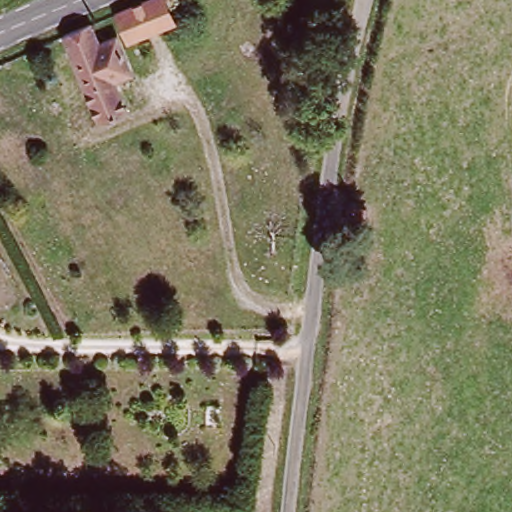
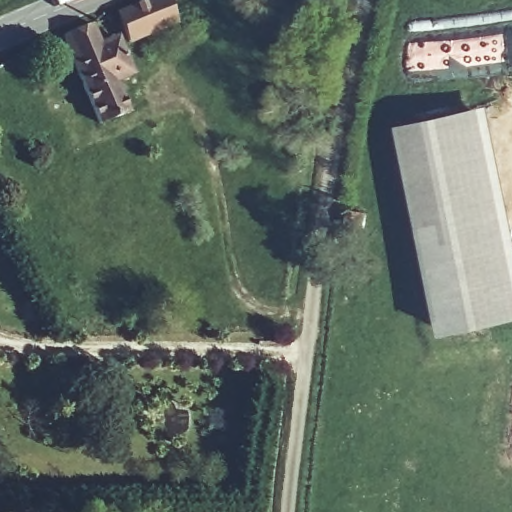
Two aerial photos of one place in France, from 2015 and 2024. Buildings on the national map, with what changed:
unchanged [(125,40),(115,16),(159,0),(161,0),(170,23),(125,40)]
unchanged [(85,28),(94,50),(114,42),(127,75),(109,82),(120,107),(120,112),(97,123),(60,38),(85,28)]
new [(491,103),(512,197),(512,318),(446,332),(400,122),(491,103)]
unchanged [(355,226),(360,212),(374,217),(368,231),(355,226)]

